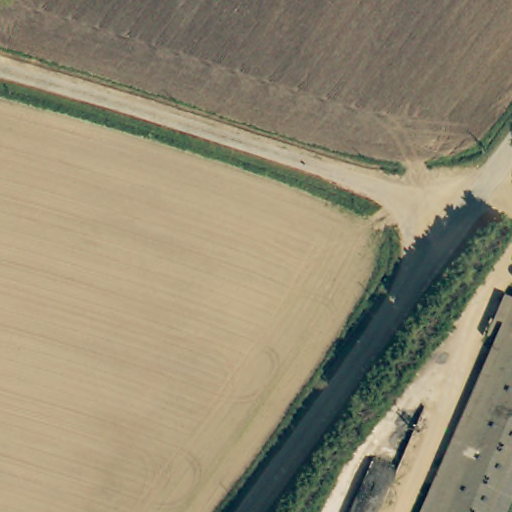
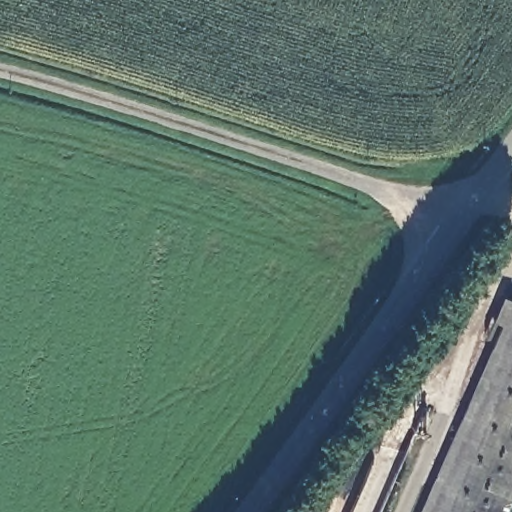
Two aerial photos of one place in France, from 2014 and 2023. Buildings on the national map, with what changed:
unchanged [(504,512),(417,512),(505,319),(498,316),(507,295),(512,297),(512,495),(504,512)]
unchanged [(380,512),(351,512),(364,480),(389,491),(380,512)]

